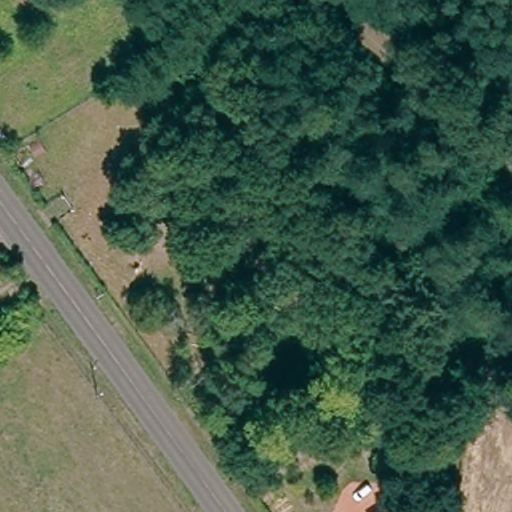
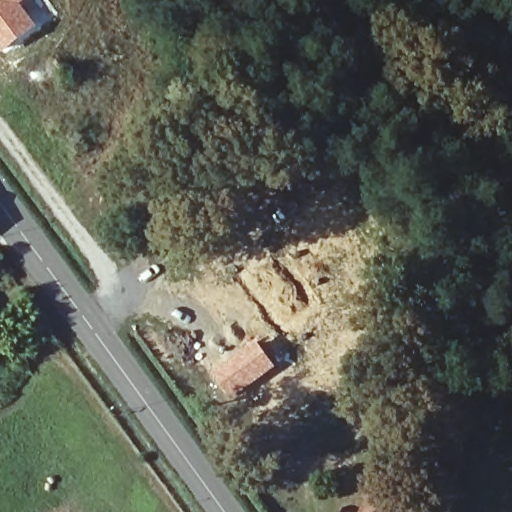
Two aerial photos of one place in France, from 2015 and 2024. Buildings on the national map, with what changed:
new [(39,26),(0,53),(0,0),(28,0),(22,4),(39,26)]
unchanged [(0,322),(0,320),(1,322),(0,322)]
new [(231,399),(212,373),(256,340),(275,367),(231,399)]
unchanged [(415,509),(418,507),(422,512),(410,512),(415,509)]

